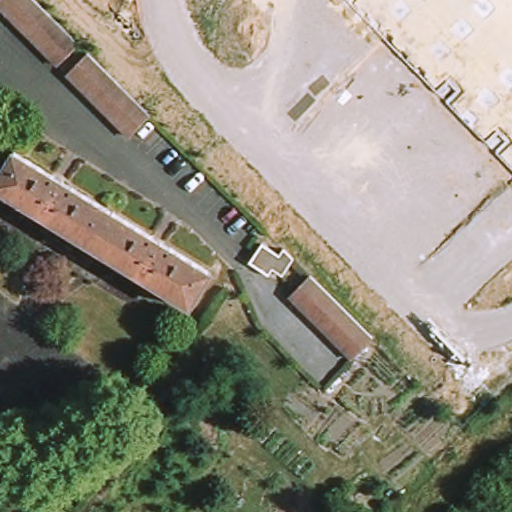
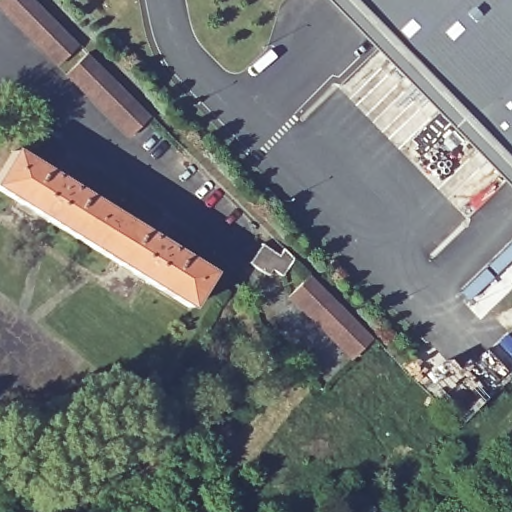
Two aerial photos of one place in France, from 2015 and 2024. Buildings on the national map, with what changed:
unchanged [(0,0),(36,0),(77,42),(57,61),(0,6),(0,0)]
new [(345,0),(512,0),(512,171),(345,0)]
unchanged [(88,53),(150,116),(129,136),(67,73),(88,53)]
unchanged [(193,309),(0,187),(0,181),(19,151),(214,275),(193,309)]
unchanged [(268,275),(251,261),(264,243),(281,256),(287,249),(299,262),(285,280),(272,268),(268,275)]
unchanged [(379,343),(360,362),(296,299),(316,279),(379,343)]

